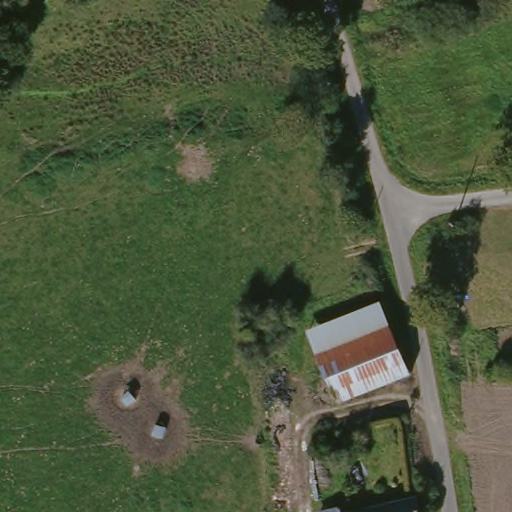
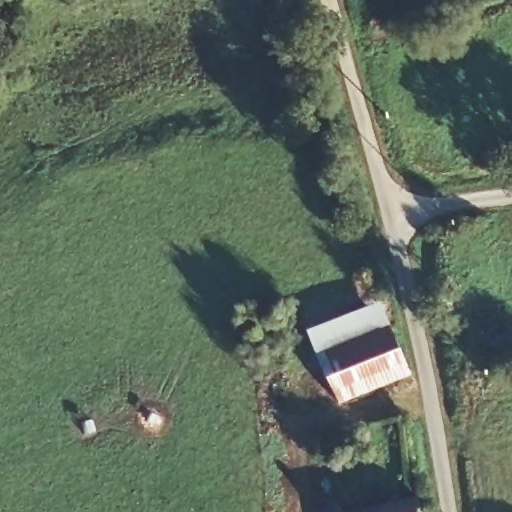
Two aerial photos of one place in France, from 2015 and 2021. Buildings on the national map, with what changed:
unchanged [(337,412),(302,337),(376,304),(408,382),(337,412)]
unchanged [(381,512),(415,505),(416,512),(381,512)]
unchanged [(342,512),(327,512),(341,508),(342,512)]

